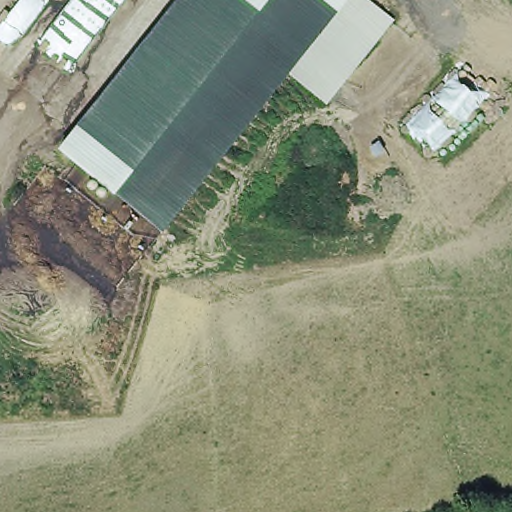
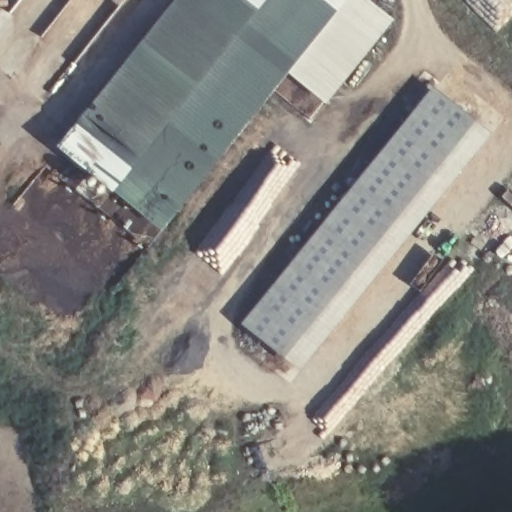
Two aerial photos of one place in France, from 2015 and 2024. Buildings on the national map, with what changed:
unchanged [(355,0),(399,41),(353,90),(330,115),(296,84),(157,230),(62,136),(187,0),(355,0)]
new [(428,87),(491,135),(297,374),(242,328),(428,87)]

